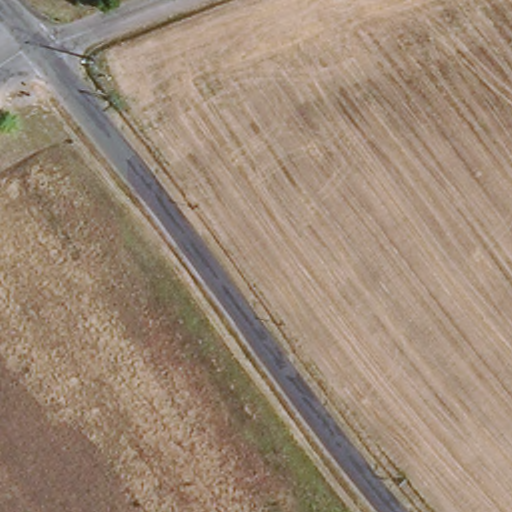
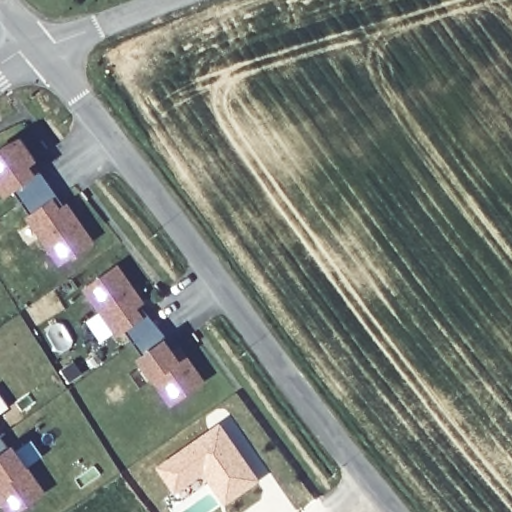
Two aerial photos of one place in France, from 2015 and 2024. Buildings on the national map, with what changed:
new [(25,137),(39,159),(37,159),(69,205),(71,204),(97,239),(64,263),(32,216),(35,214),(17,188),(14,190),(10,193),(0,178),(0,170),(0,151),(11,144),(25,137)]
new [(120,264),(145,300),(137,305),(144,314),(148,312),(157,325),(159,324),(169,338),(167,339),(175,349),(182,344),(206,379),(174,402),(142,356),(145,354),(127,328),(120,333),(87,287),(120,264)]
new [(1,416),(0,416),(0,415),(1,416)]
new [(219,422),(260,479),(223,506),(202,477),(175,496),(155,466),(219,422)]
new [(12,447),(15,445),(47,491),(17,512),(13,512),(0,492),(0,431),(12,447)]

